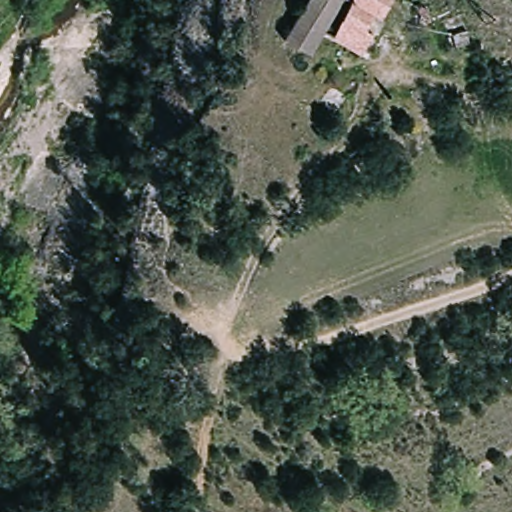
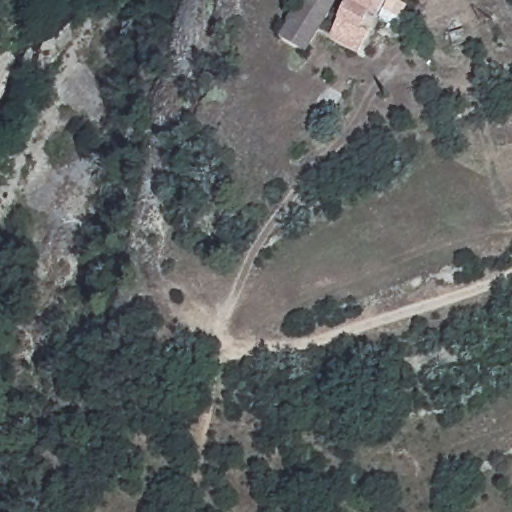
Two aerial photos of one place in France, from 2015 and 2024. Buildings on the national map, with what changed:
unchanged [(293,42),(281,50),(306,0),(350,0),(329,39),(311,37),(293,42)]
unchanged [(329,39),(350,0),(390,0),(360,54),(329,39)]
unchanged [(442,17),(464,13),(470,42),(447,44),(442,17)]

